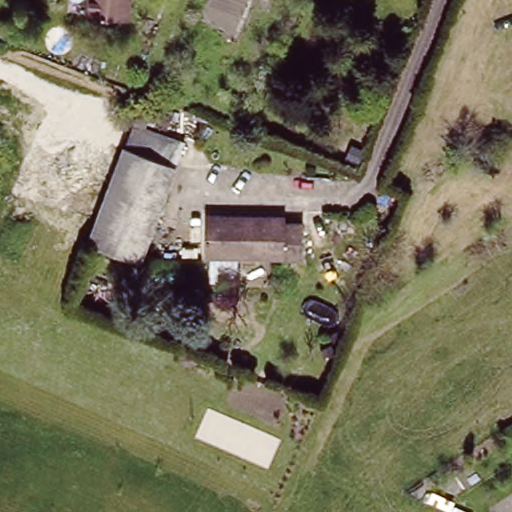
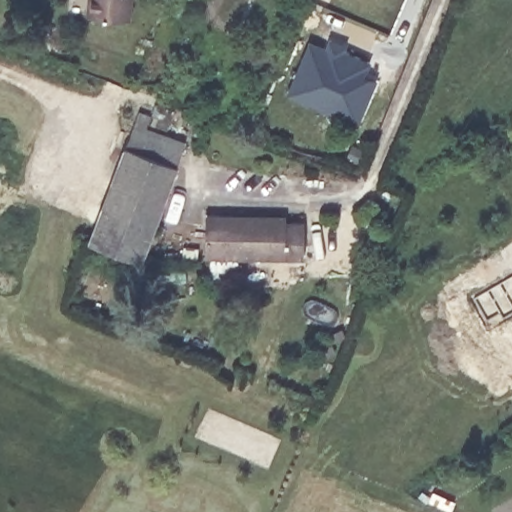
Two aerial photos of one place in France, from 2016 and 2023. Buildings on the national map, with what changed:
unchanged [(92,10),(92,0),(134,0),(132,15),(92,10)]
new [(358,123),(335,114),(289,94),(310,44),(340,56),(342,52),(370,63),(364,76),(376,81),(358,123)]
unchanged [(143,247),(92,227),(137,115),(187,138),(143,247)]
unchanged [(304,250),(243,248),(241,273),(214,271),(214,245),(207,245),(211,207),(287,210),(287,221),(304,221),(304,250)]

